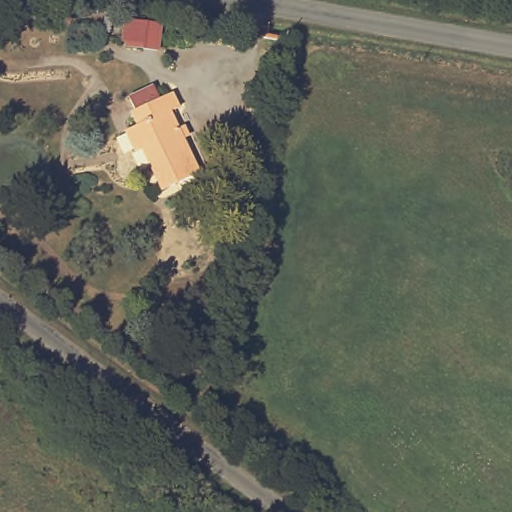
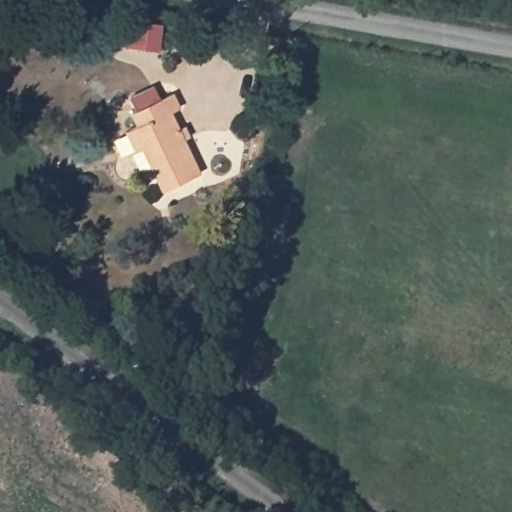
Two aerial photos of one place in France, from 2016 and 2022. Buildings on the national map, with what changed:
unchanged [(129,22),(160,26),(157,53),(126,49),(129,22)]
unchanged [(141,142),(134,145),(124,124),(136,118),(129,104),(171,84),(177,99),(169,103),(199,165),(161,183),(141,142)]
unchanged [(141,329),(157,325),(162,342),(146,346),(141,329)]

